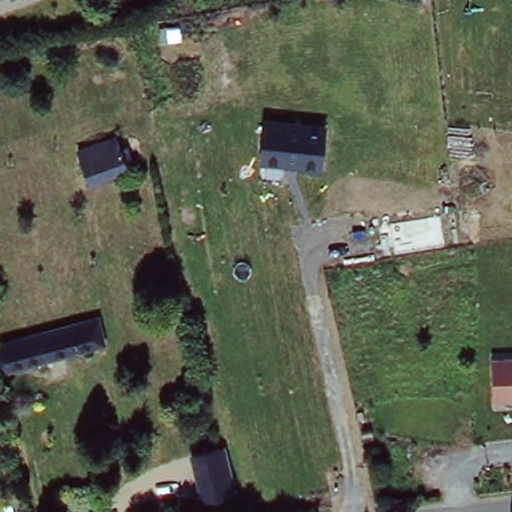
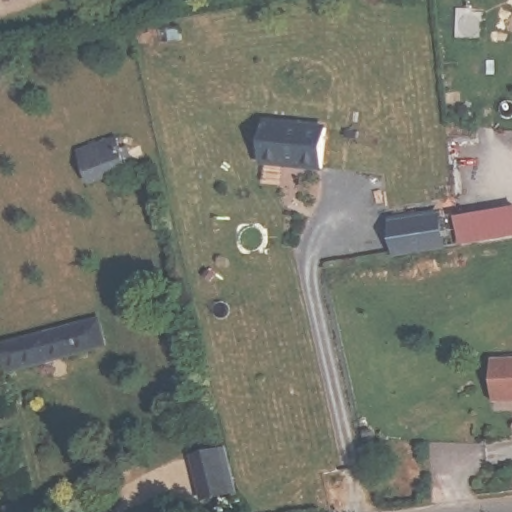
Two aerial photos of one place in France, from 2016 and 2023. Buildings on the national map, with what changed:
unchanged [(321,168),(260,160),(265,122),(323,127),(321,168)]
unchanged [(120,153),(125,151),(132,172),(126,173),(89,187),(77,155),(115,141),(120,153)]
new [(512,212),(512,238),(458,245),(456,221),(512,212)]
new [(436,220),(441,248),(393,257),(388,228),(436,220)]
unchanged [(85,356),(0,379),(0,343),(75,321),(85,356)]
unchanged [(486,356),(512,356),(512,403),(487,403),(486,356)]
unchanged [(201,500),(190,457),(223,447),(234,492),(201,500)]

